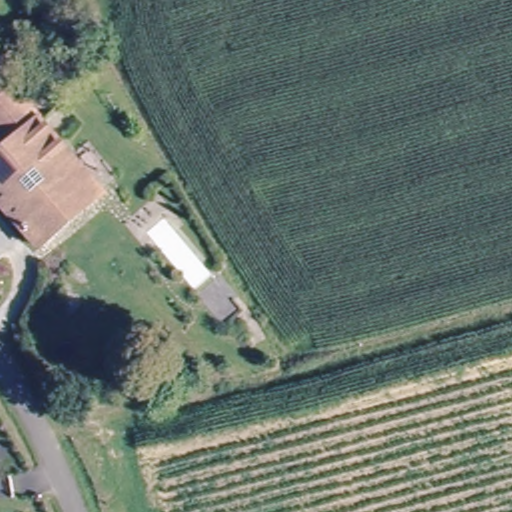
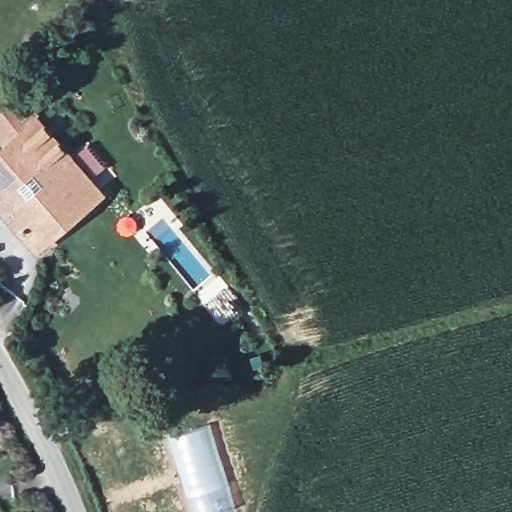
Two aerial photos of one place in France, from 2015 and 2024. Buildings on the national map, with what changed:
unchanged [(0,162),(15,148),(0,131),(0,108),(18,91),(108,189),(46,246),(0,196),(0,162)]
new [(208,423),(223,467),(235,510),(230,512),(192,512),(178,472),(170,436),(208,423)]

